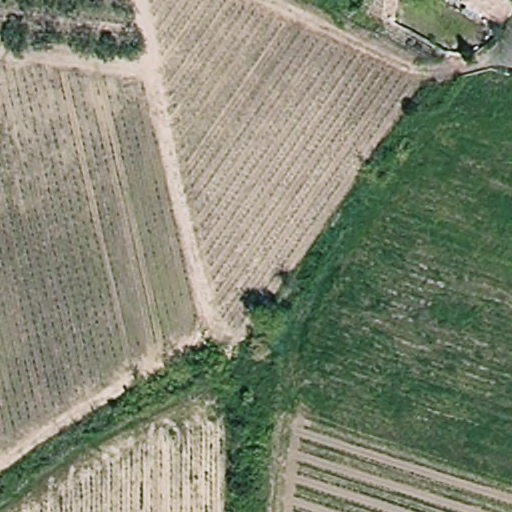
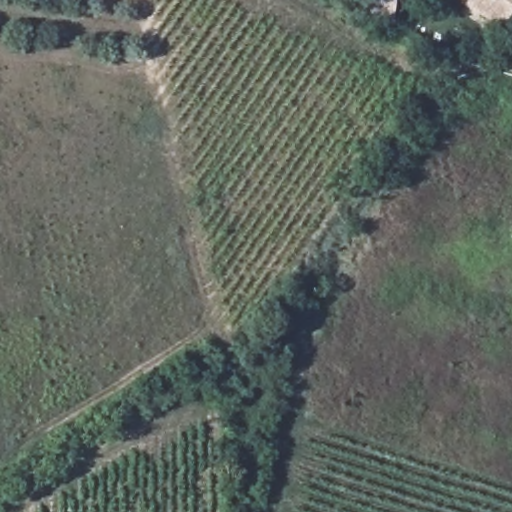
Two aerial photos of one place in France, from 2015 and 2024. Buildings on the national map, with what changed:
unchanged [(462,6),(466,0),(512,0),(512,19),(508,26),(462,6)]

